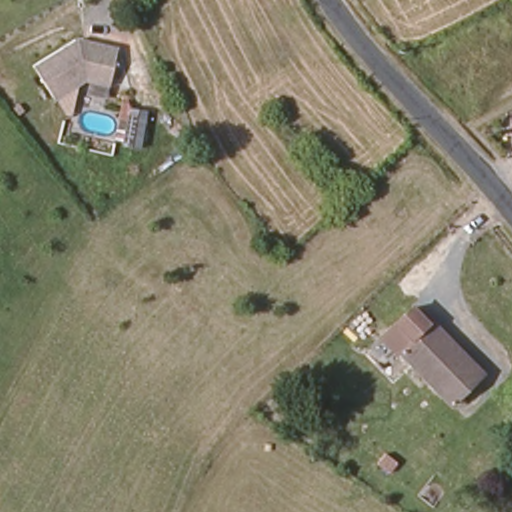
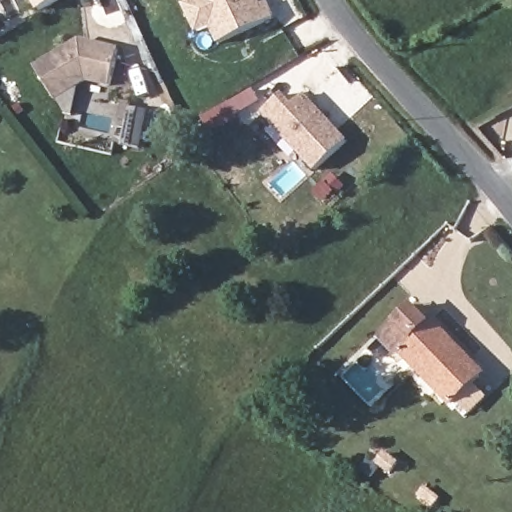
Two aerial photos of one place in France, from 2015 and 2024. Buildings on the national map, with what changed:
new [(30,0),(59,0),(38,12),(30,0)]
new [(219,45),(211,29),(198,35),(183,5),(195,0),(259,0),(262,5),(268,2),(276,19),(219,45)]
unchanged [(111,82),(88,78),(55,98),(34,66),(78,39),(117,47),(111,82)]
new [(348,140),(315,171),(261,113),(282,94),(293,104),(305,93),(348,140)]
unchanged [(451,406),(401,351),(395,355),(377,337),(383,333),(411,308),(428,324),(432,321),(470,362),(466,368),(479,379),(451,406)]

